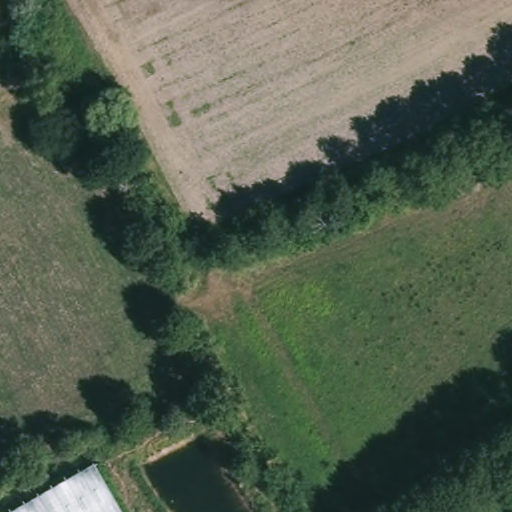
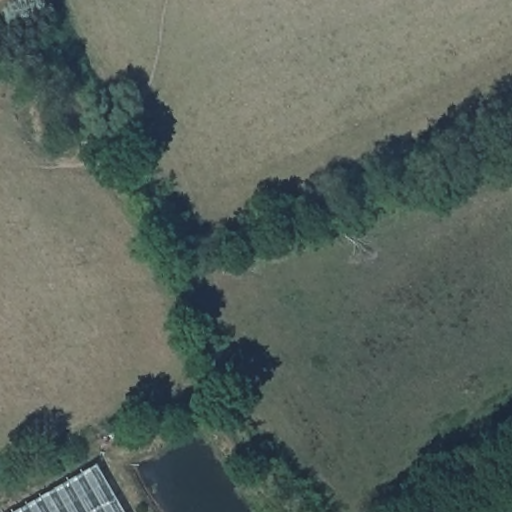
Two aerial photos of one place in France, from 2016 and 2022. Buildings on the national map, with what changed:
unchanged [(93,465),(120,512),(10,512),(93,465)]

